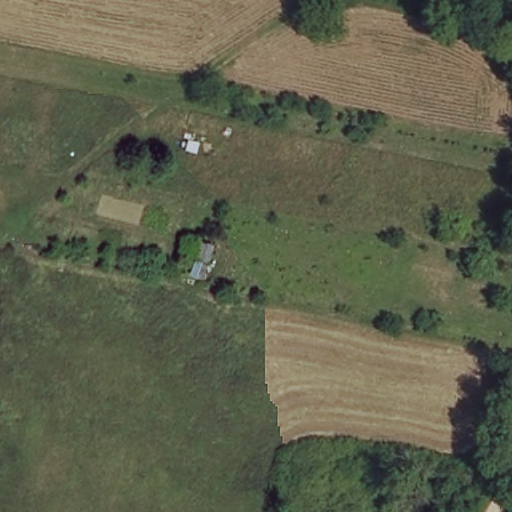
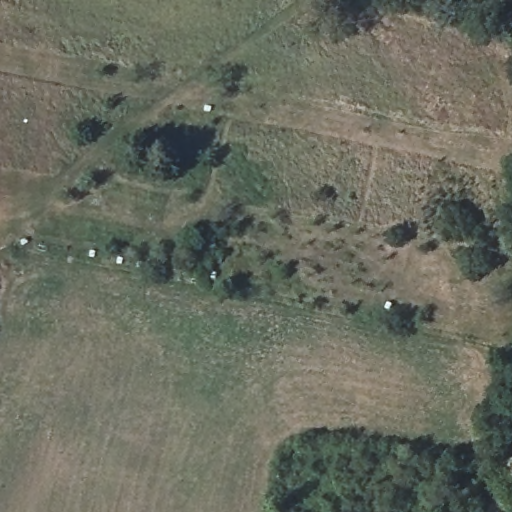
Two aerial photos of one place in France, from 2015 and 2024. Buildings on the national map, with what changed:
unchanged [(197,240),(217,242),(216,266),(194,265),(197,240)]

